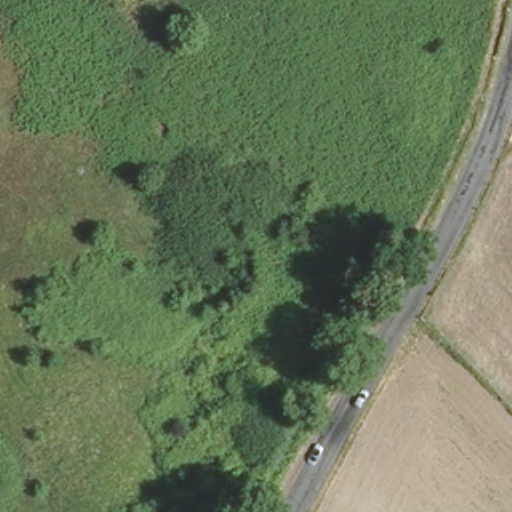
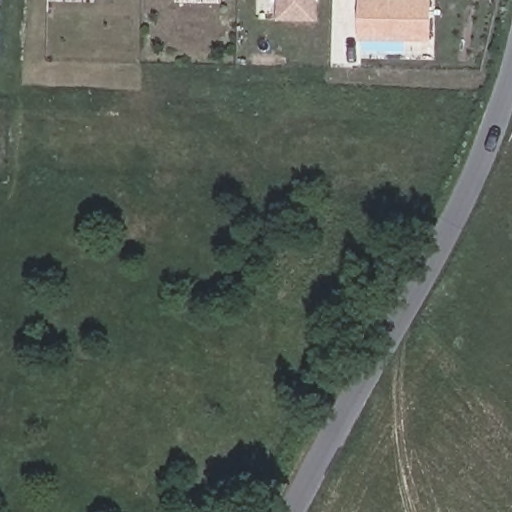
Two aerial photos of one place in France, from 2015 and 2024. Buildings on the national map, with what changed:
new [(275,20),(276,0),(317,0),(317,20),(275,20)]
new [(360,0),(433,0),(432,43),(359,41),(360,0)]

